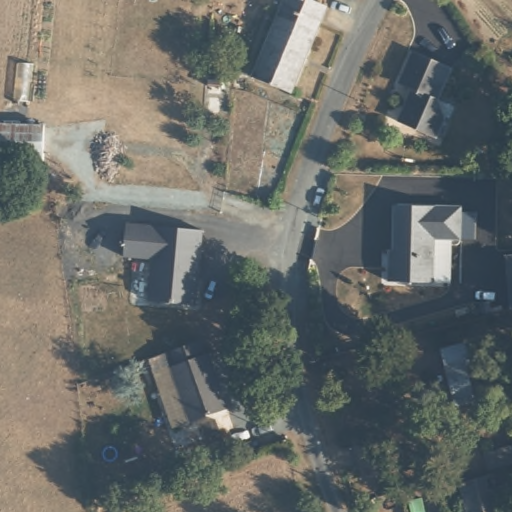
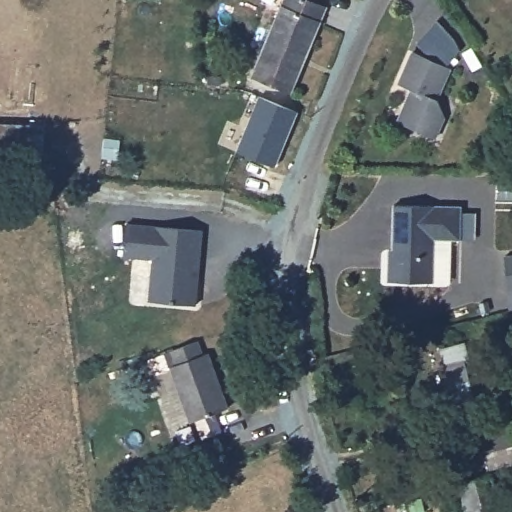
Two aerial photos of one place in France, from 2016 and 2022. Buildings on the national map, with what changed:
unchanged [(258,75),(288,0),(321,0),(332,4),(297,90),(258,75)]
unchanged [(390,120),(403,88),(390,82),(404,50),(441,65),(427,99),(432,110),(435,116),(427,135),(406,127),(390,120)]
new [(259,95),(298,111),(276,166),(237,150),(259,95)]
unchanged [(44,164),(0,161),(0,120),(47,122),(44,164)]
unchanged [(450,237),(430,239),(434,293),(389,295),(388,256),(391,256),(387,202),(448,200),(450,237)]
unchanged [(151,256),(122,255),(124,221),(200,227),(196,302),(148,298),(151,256)]
unchanged [(504,279),(512,278),(512,313),(507,313),(504,279)]
unchanged [(163,392),(149,356),(199,336),(206,351),(210,349),(232,403),(194,420),(177,427),(163,392)]
unchanged [(467,339),(479,399),(458,402),(445,345),(467,339)]
unchanged [(492,445),(512,441),(512,460),(506,461),(496,463),(492,445)]
unchanged [(476,473),(486,471),(495,512),(466,512),(457,477),(476,473)]

